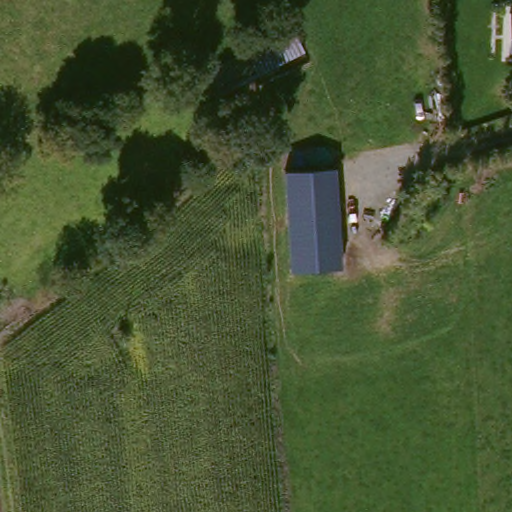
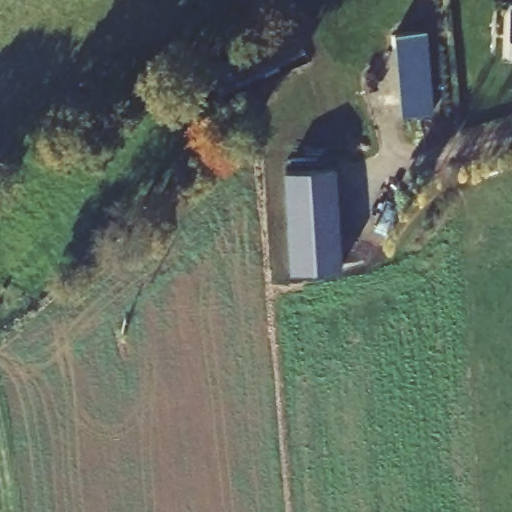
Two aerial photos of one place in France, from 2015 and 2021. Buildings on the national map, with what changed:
unchanged [(291,32),(300,52),(257,77),(254,73),(237,82),(228,64),(243,56),(291,32)]
new [(427,32),(434,114),(402,117),(395,35),(427,32)]
unchanged [(340,165),(347,264),(292,267),(283,169),(340,165)]

